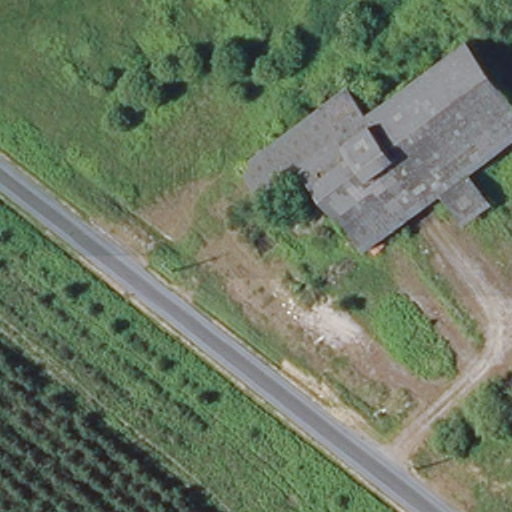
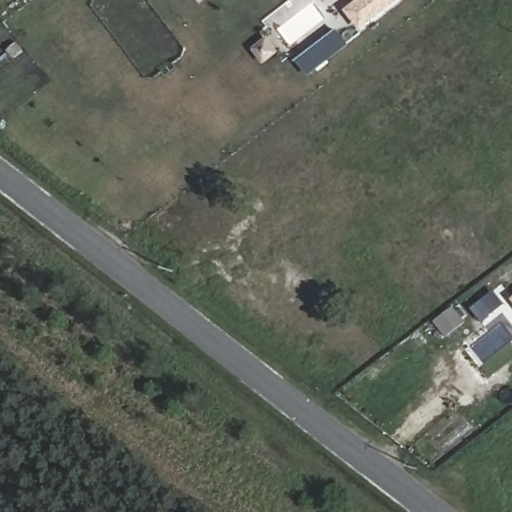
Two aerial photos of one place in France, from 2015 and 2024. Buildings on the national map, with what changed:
new [(344,10),(357,0),(391,0),(355,25),(344,10)]
demolished [(366,115),(467,44),(512,105),(512,143),(468,176),(490,206),(462,228),(442,199),(361,256),(295,173),(259,200),(236,170),(346,88),(366,115)]

